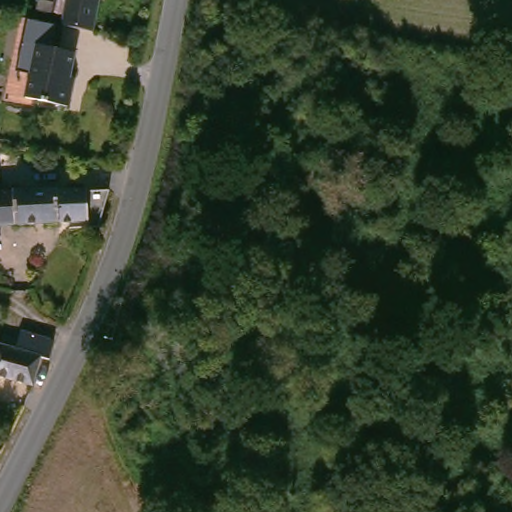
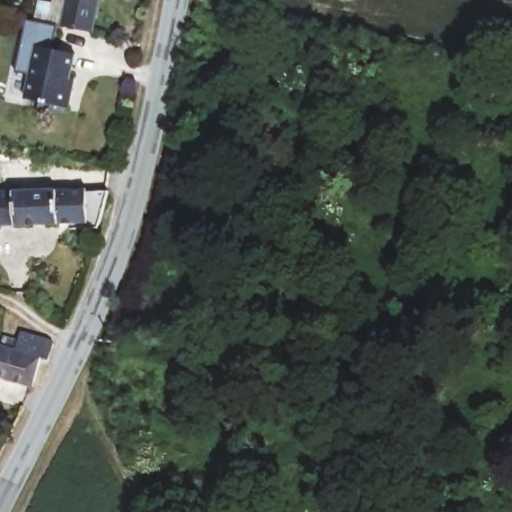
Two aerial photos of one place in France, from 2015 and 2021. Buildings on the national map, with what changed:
unchanged [(103,0),(98,28),(65,21),(69,0),(103,0)]
unchanged [(72,79),(75,85),(71,103),(29,93),(40,40),(79,48),(72,79)]
unchanged [(0,226),(0,191),(56,189),(58,224),(0,226)]
unchanged [(58,354),(49,352),(42,381),(0,369),(0,365),(7,339),(10,340),(13,330),(28,334),(30,326),(58,334),(63,339),(58,354)]

